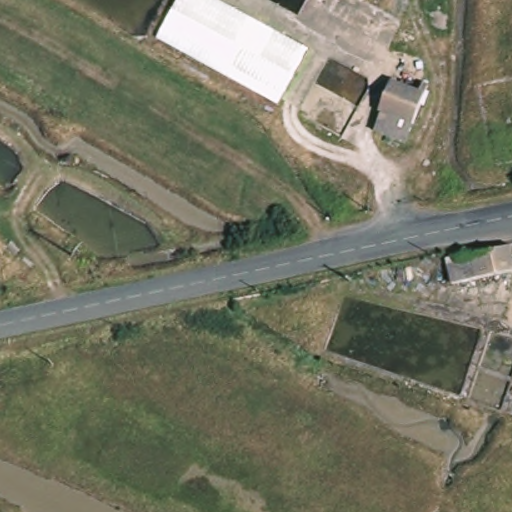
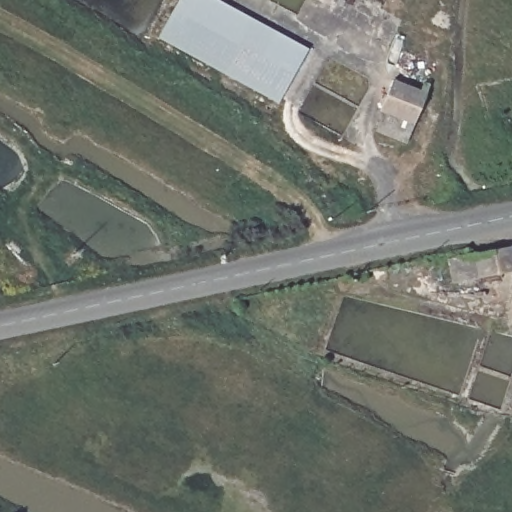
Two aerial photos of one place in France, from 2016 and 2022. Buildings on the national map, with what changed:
unchanged [(154,41),(176,0),(210,0),(306,52),(277,108),(154,41)]
unchanged [(391,142),(369,129),(380,110),(393,86),(397,79),(418,91),(423,85),(432,91),(409,128),(398,147),(391,142)]
unchanged [(510,249),(512,258),(512,271),(449,282),(445,262),(510,249)]

